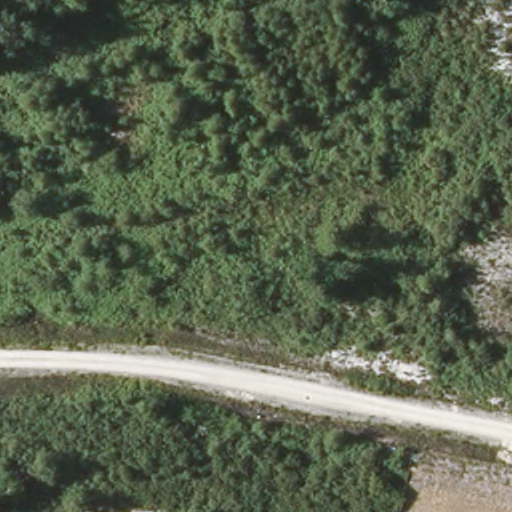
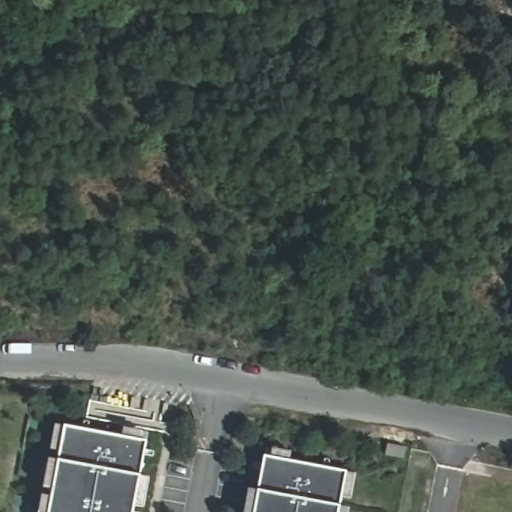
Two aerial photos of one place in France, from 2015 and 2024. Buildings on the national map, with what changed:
new [(59,462),(66,427),(147,442),(141,477),(134,512),(50,512),(59,462)]
new [(258,492),(265,457),(347,472),(340,507),(339,512),(255,512),(258,492)]

